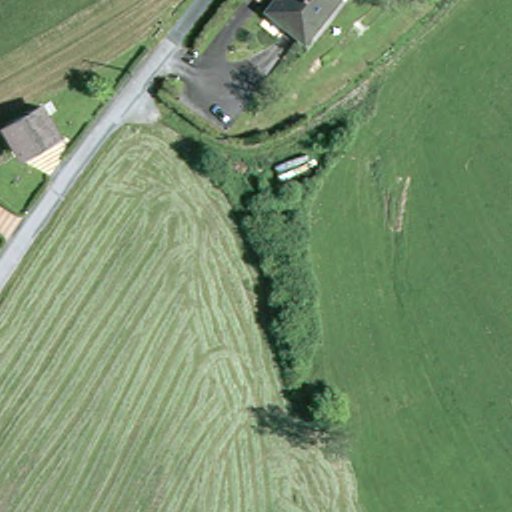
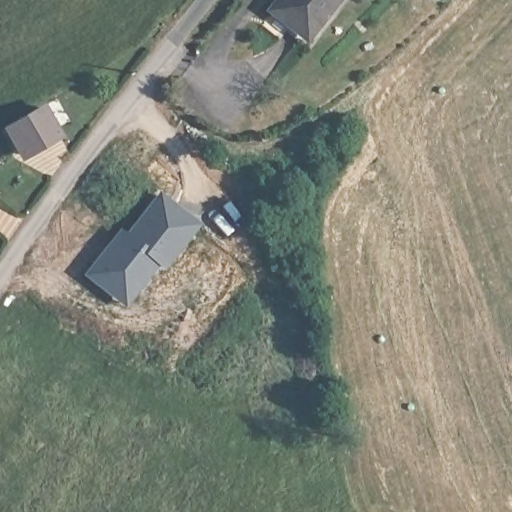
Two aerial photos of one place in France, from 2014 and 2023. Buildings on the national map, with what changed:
unchanged [(337,0),(304,41),(271,15),(283,0),(337,0)]
unchanged [(62,141),(25,163),(9,133),(44,112),(62,141)]
new [(81,275),(118,228),(123,232),(158,190),(199,223),(163,270),(156,265),(123,308),(81,275)]

